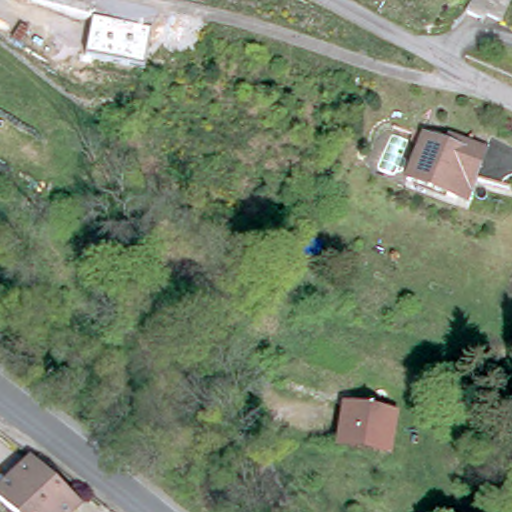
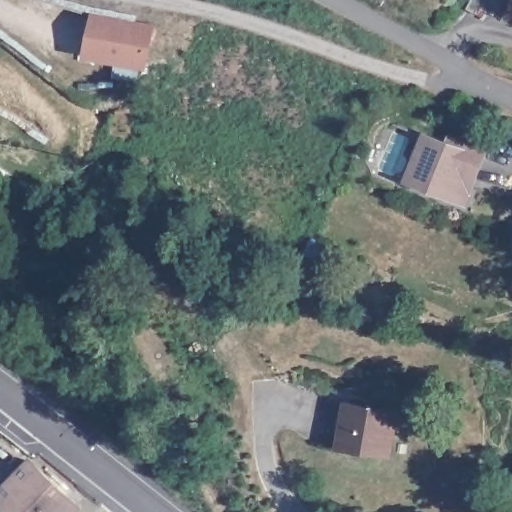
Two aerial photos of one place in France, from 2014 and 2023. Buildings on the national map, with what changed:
unchanged [(502,18),(486,11),(483,19),(465,12),(470,0),(509,0),(502,18)]
new [(91,14),(156,26),(146,69),(83,56),(91,14)]
unchanged [(456,199),(408,178),(412,168),(426,134),(447,142),(449,135),(487,151),(474,181),(469,193),(464,203),(456,199)]
unchanged [(374,446),(343,441),(349,402),(395,409),(390,441),(389,448),(374,446)]
unchanged [(0,492),(29,459),(78,500),(67,512),(18,512),(0,497),(0,492)]

